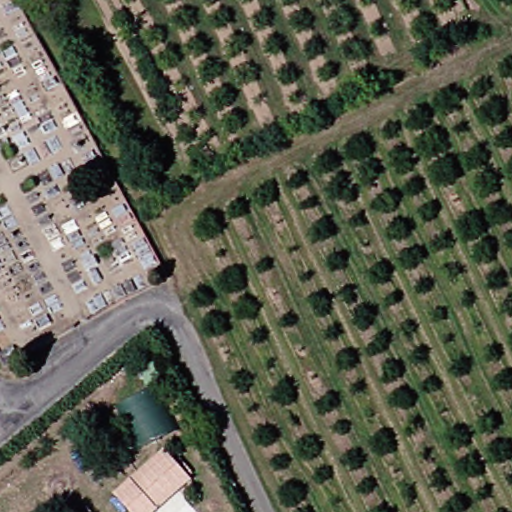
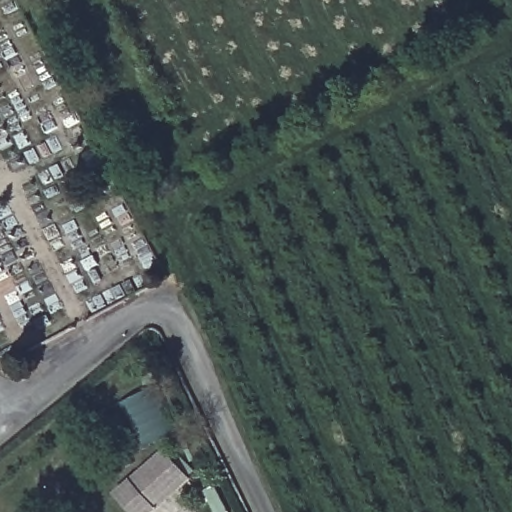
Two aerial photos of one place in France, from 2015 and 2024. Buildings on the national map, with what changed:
unchanged [(176,427),(142,447),(122,405),(155,386),(176,427)]
unchanged [(166,450),(193,481),(157,512),(132,512),(114,493),(166,450)]

